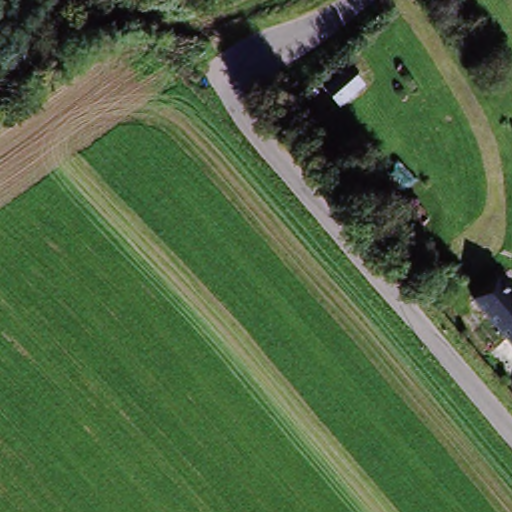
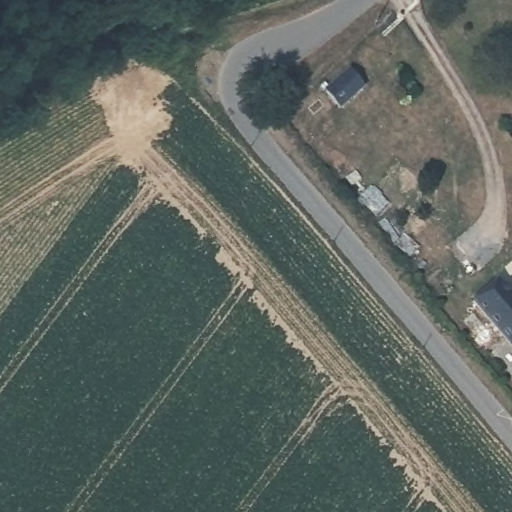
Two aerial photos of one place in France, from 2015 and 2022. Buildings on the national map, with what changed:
unchanged [(323,101),(368,65),(383,83),(339,119),(323,102),(323,101)]
unchanged [(413,198),(436,224),(423,236),(400,210),(413,198)]
unchanged [(485,296),(508,275),(512,280),(512,328),(485,296)]

